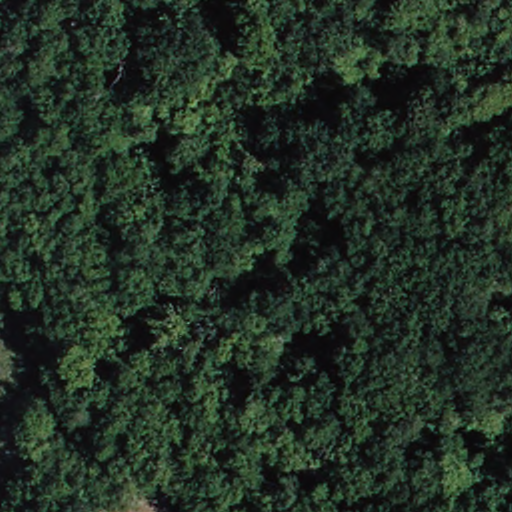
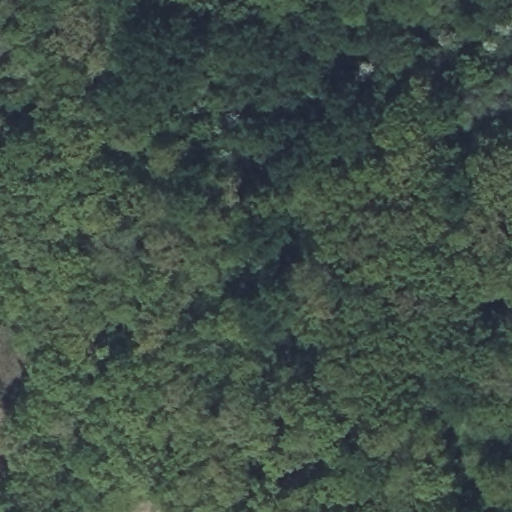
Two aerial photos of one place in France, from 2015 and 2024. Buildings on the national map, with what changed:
[]

